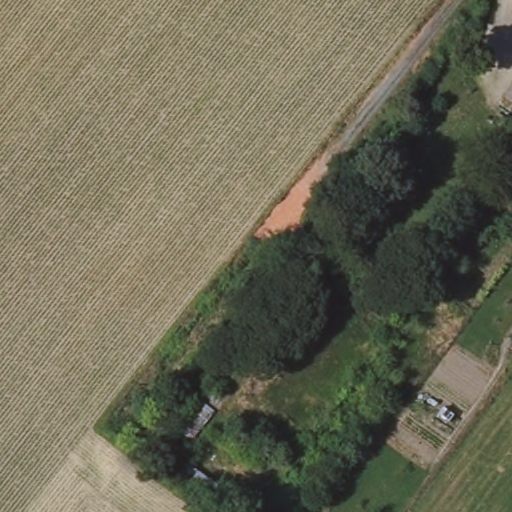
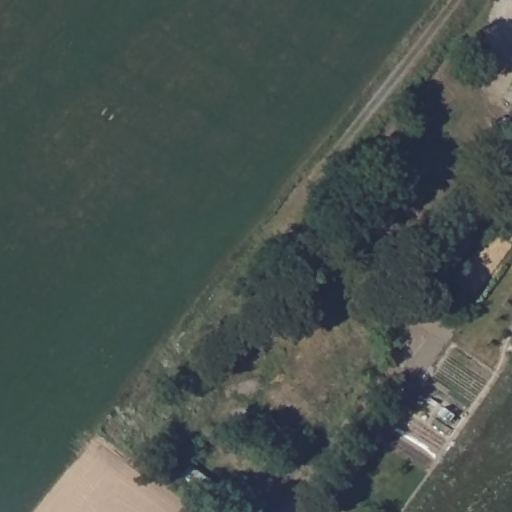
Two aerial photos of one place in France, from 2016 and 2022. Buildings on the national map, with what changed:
unchanged [(512,81),(512,106),(500,98),(512,81)]

